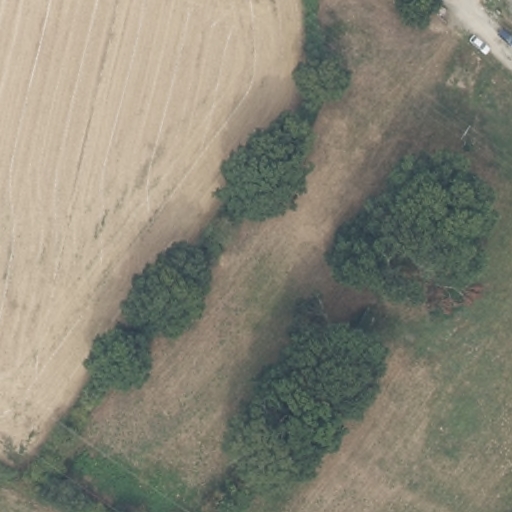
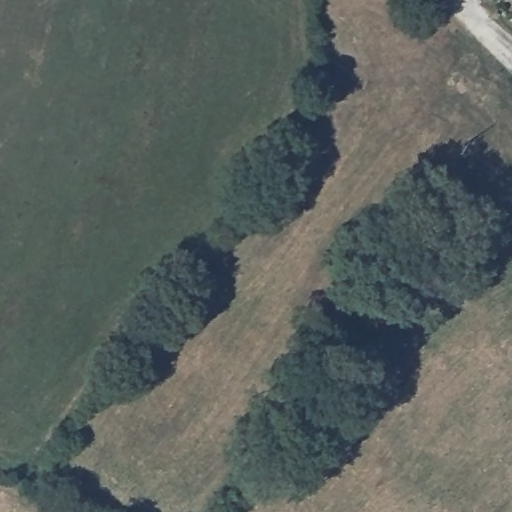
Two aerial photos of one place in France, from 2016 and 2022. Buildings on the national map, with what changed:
[]

